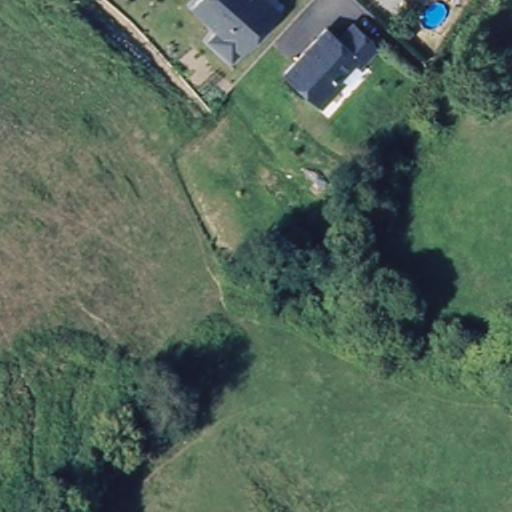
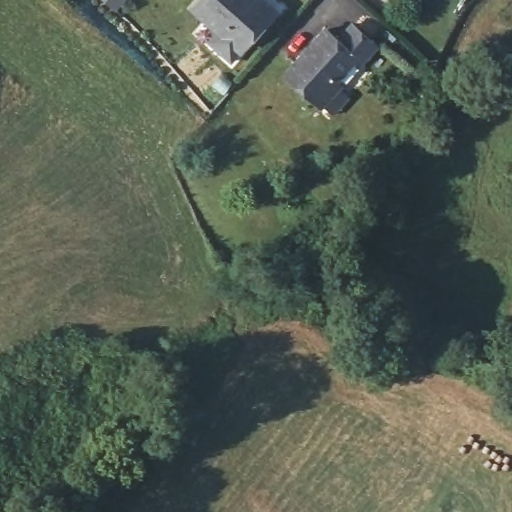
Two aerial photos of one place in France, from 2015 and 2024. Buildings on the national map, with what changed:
unchanged [(207,44),(217,32),(192,10),(201,0),(260,0),(275,14),(239,53),(229,64),(207,44)]
unchanged [(342,50),(356,35),(380,57),(365,72),(361,69),(339,92),(343,96),(325,116),(288,82),(330,39),(342,50)]

